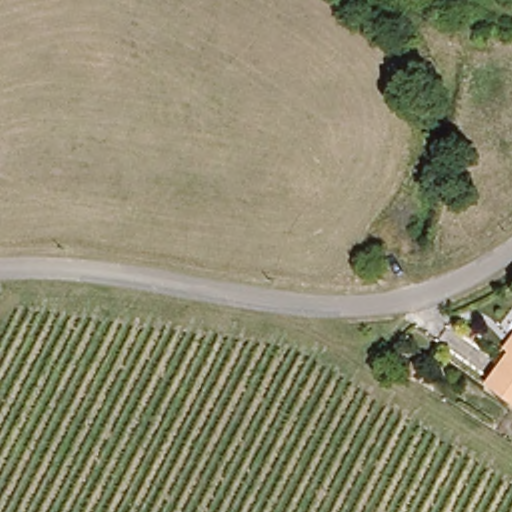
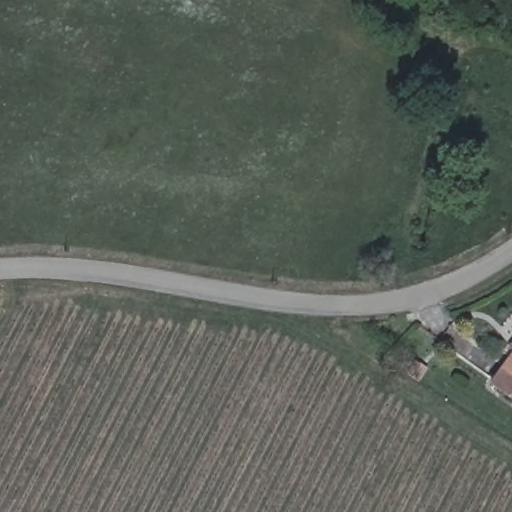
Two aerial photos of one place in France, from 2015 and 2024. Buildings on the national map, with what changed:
unchanged [(512,335),(512,346),(507,342),(512,335)]
unchanged [(512,350),(512,400),(488,382),(512,350)]
unchanged [(416,368),(422,373),(413,387),(407,382),(416,368)]

